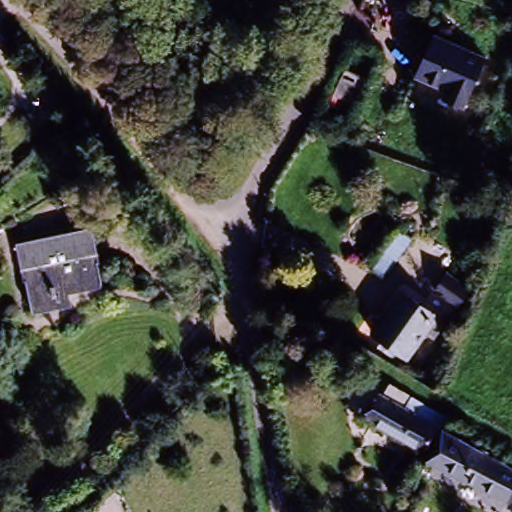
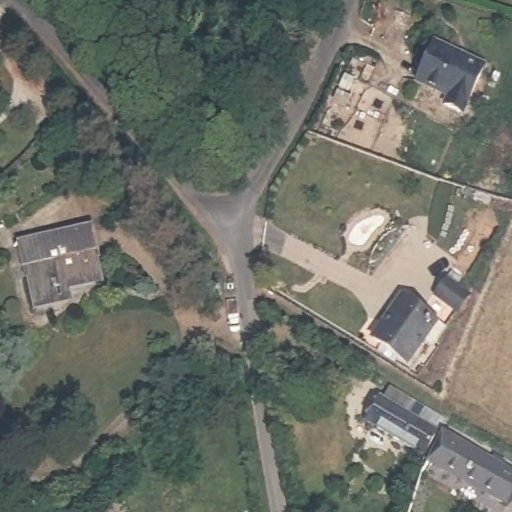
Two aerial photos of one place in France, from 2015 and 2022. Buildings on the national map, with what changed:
unchanged [(492,62),(470,107),(420,77),(442,35),(492,62)]
unchanged [(59,299),(33,304),(21,244),(91,230),(101,279),(57,287),(59,299)]
unchanged [(371,333),(400,297),(430,322),(400,357),(371,333)]
unchanged [(425,445),(375,409),(388,387),(394,377),(430,402),(424,412),(440,423),(425,445)]
unchanged [(481,497),(431,462),(445,428),(502,466),(481,497)]
unchanged [(512,473),(512,502),(506,512),(504,512),(481,497),(502,466),(512,473)]

